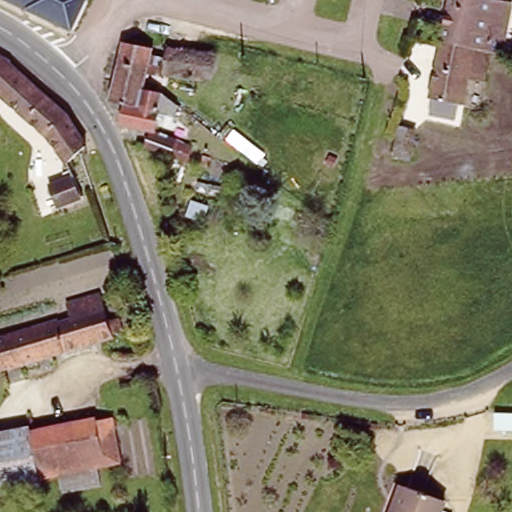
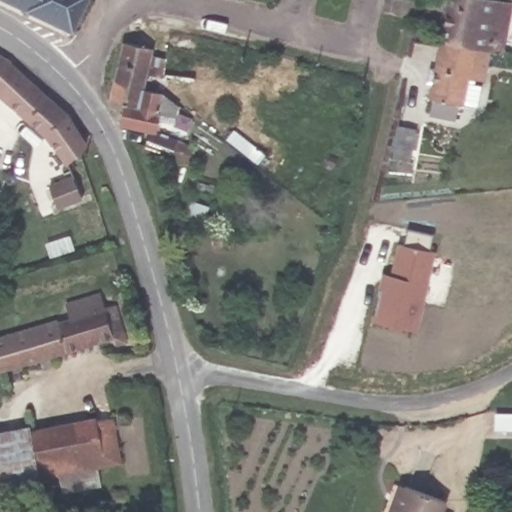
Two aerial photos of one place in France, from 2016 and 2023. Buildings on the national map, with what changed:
unchanged [(4,0),(85,0),(73,31),(4,0)]
unchanged [(497,0),(486,49),(438,38),(447,0),(497,0)]
unchanged [(425,96),(438,38),(486,49),(478,81),(465,78),(460,105),(453,104),(450,116),(427,111),(430,98),(424,97),(425,96)]
unchanged [(153,46),(143,87),(112,80),(120,39),(153,46)]
unchanged [(172,69),(162,68),(165,41),(213,48),(210,74),(195,71),(193,86),(170,83),(172,69)]
unchanged [(0,87),(0,50),(13,57),(68,108),(72,111),(85,142),(82,144),(68,153),(0,87)]
unchanged [(112,80),(143,87),(162,91),(180,106),(175,120),(157,111),(154,125),(123,119),(128,98),(108,93),(112,80)]
unchanged [(410,126),(403,158),(388,154),(395,123),(410,126)]
unchanged [(152,126),(190,141),(183,156),(147,143),(152,126)]
unchanged [(80,195),(59,204),(50,181),(71,172),(80,195)]
new [(382,272),(391,274),(397,245),(405,247),(407,230),(433,235),(430,250),(435,252),(418,332),(373,322),(382,272)]
unchanged [(0,339),(57,321),(58,326),(78,320),(75,308),(101,300),(110,325),(121,321),(123,331),(110,335),(112,341),(1,375),(0,372),(0,339)]
unchanged [(75,435),(111,430),(118,476),(81,481),(75,435)]
unchanged [(30,442),(37,488),(0,493),(0,438),(29,434),(30,442)]
unchanged [(30,442),(75,435),(81,481),(37,488),(30,442)]
unchanged [(405,480),(443,494),(436,512),(393,512),(405,480)]

